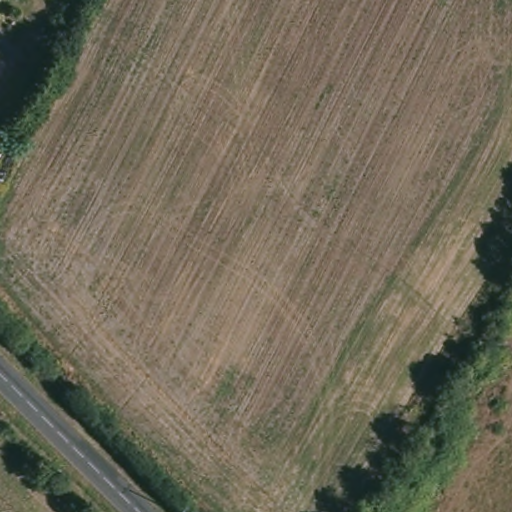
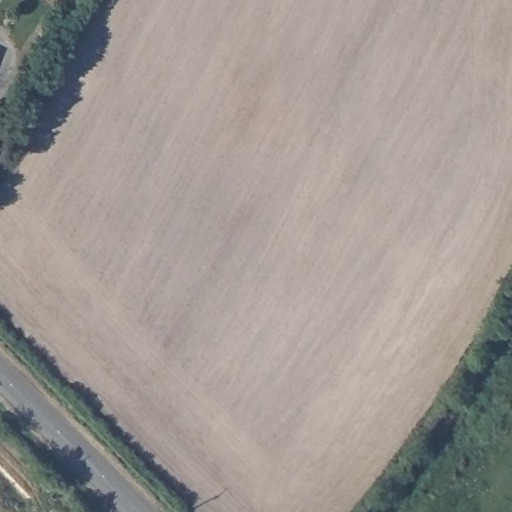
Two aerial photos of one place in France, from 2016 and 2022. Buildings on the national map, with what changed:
[]

